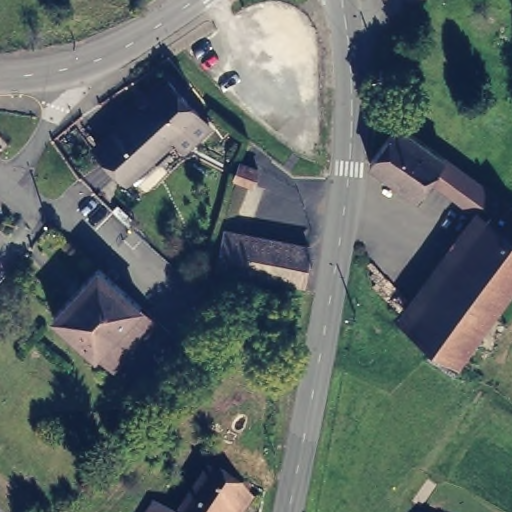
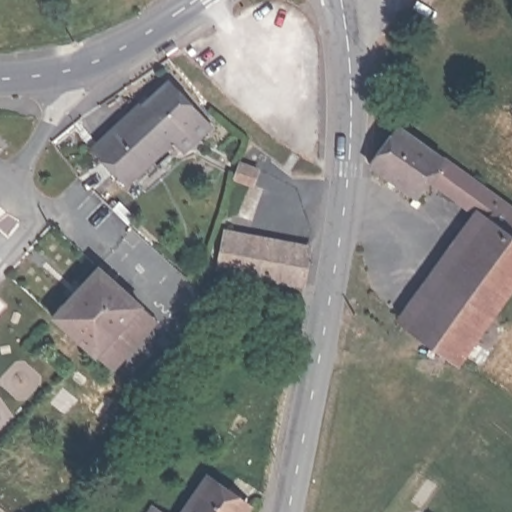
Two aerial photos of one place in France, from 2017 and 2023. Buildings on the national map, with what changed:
unchanged [(141,110),(145,113),(147,111),(155,104),(172,89),(200,117),(202,115),(217,131),(192,155),(175,140),(125,185),(95,156),(141,110)]
unchanged [(452,172),(512,215),(512,286),(456,363),(405,328),(481,221),(430,185),(415,201),(367,168),(392,129),(413,145),(452,172)]
unchanged [(258,170),(253,187),(233,184),(239,164),(258,170)]
unchanged [(227,277),(236,241),(311,256),(308,295),(227,277)]
unchanged [(102,266),(144,305),(100,354),(57,315),(102,266)]
unchanged [(100,354),(144,305),(162,321),(118,370),(100,354)]
unchanged [(202,497),(212,484),(213,481),(254,511),(253,512),(191,512),(192,511),(202,497)]
unchanged [(192,511),(191,512),(170,512),(177,502),(192,511)]

